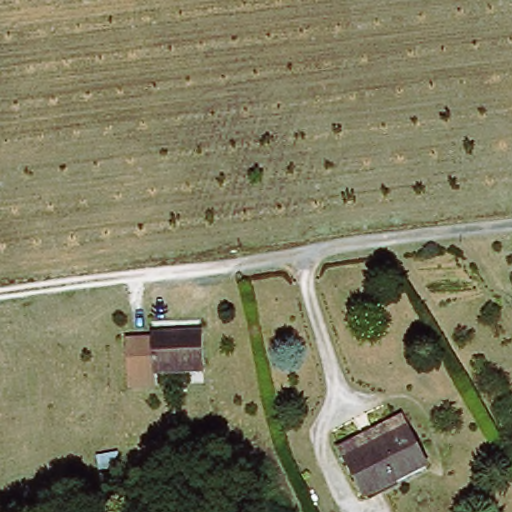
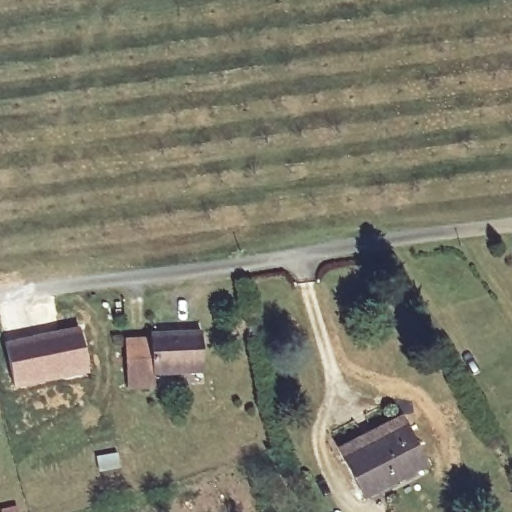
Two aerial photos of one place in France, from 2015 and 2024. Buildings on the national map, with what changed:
new [(80,325),(90,373),(13,388),(5,341),(80,325)]
unchanged [(125,342),(150,340),(151,336),(201,331),(205,371),(156,375),(156,388),(129,390),(125,342)]
unchanged [(403,424),(425,463),(363,497),(342,458),(403,424)]

